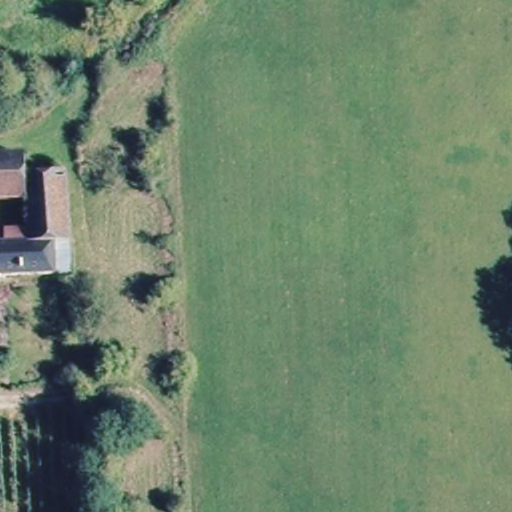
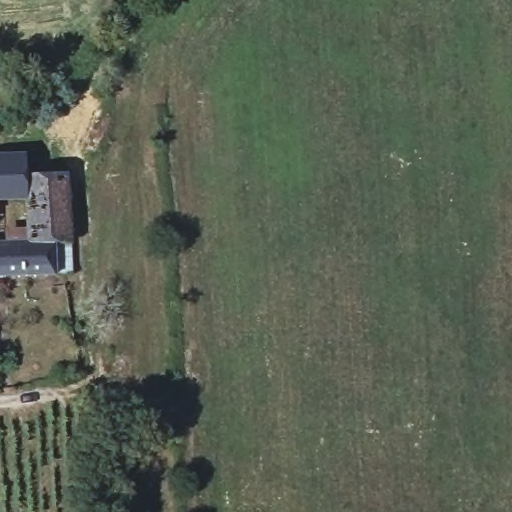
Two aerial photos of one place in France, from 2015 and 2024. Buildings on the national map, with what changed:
unchanged [(24,152),(24,176),(66,177),(68,275),(63,275),(0,275),(0,238),(25,238),(25,203),(0,203),(0,153),(24,152)]

